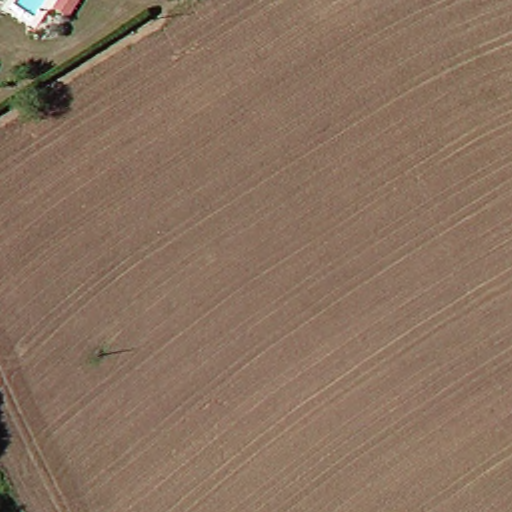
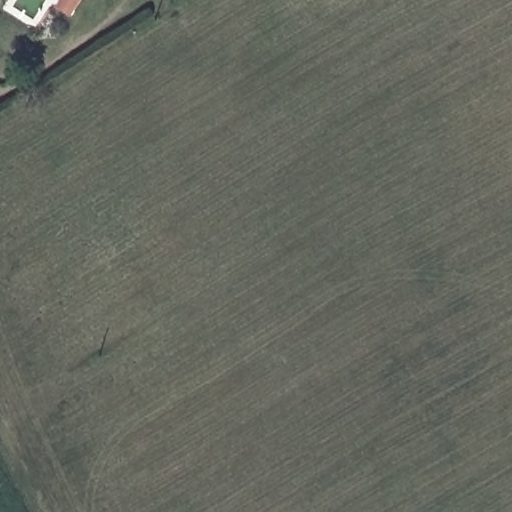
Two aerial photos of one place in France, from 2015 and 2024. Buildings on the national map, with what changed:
unchanged [(70,29),(49,14),(59,0),(90,0),(81,12),(70,29)]

